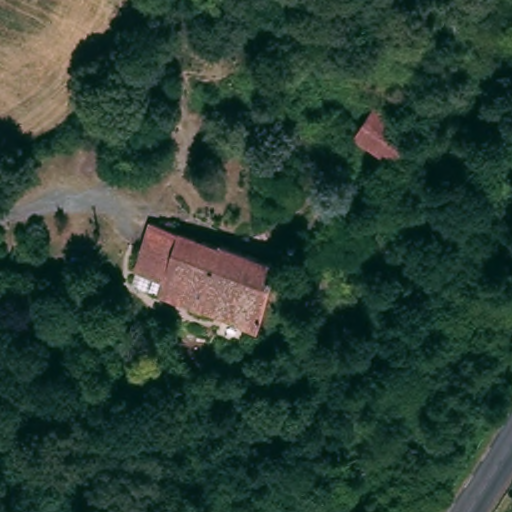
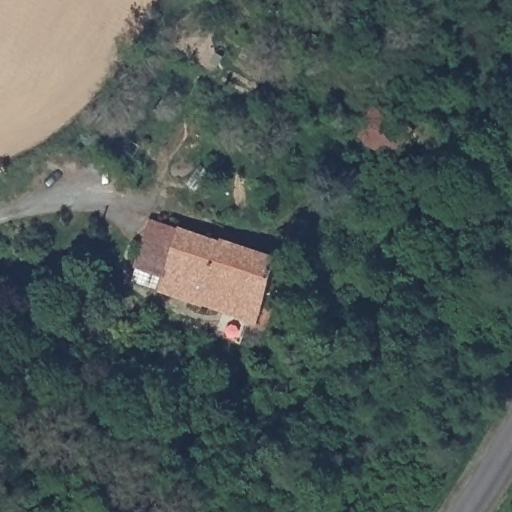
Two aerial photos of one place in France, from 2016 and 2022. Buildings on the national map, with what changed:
unchanged [(391,157),(354,129),(375,101),(412,130),(391,157)]
unchanged [(258,323),(162,293),(165,284),(135,274),(151,220),(277,259),(258,323)]

